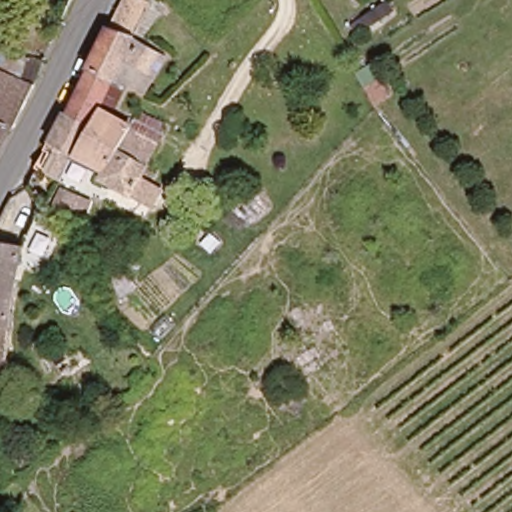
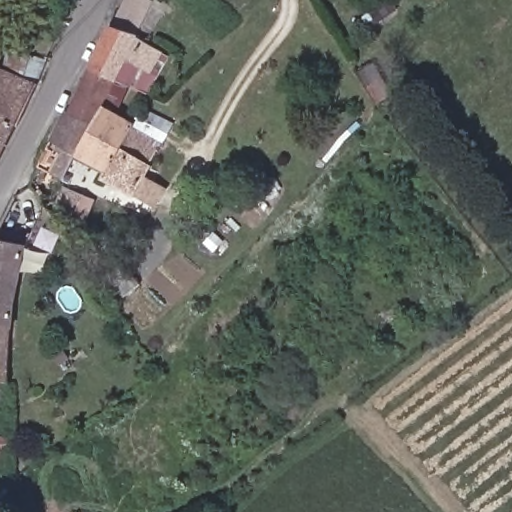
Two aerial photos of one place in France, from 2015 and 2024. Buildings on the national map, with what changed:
unchanged [(122,0),(144,0),(149,2),(132,36),(110,25),(122,0)]
unchanged [(60,181),(41,170),(55,143),(51,140),(65,110),(67,112),(90,65),(110,25),(155,50),(156,48),(165,53),(147,90),(115,74),(115,75),(128,83),(127,85),(124,92),(115,109),(101,101),(97,108),(75,153),(74,155),(60,181)]
unchanged [(32,51),(44,55),(33,96),(28,106),(21,122),(17,121),(0,157),(0,40),(18,46),(32,51)]
unchanged [(145,199),(131,192),(102,177),(106,170),(75,153),(97,108),(125,122),(128,115),(132,117),(137,105),(166,120),(160,140),(140,177),(152,184),(161,188),(152,204),(145,199)]
unchanged [(74,195),(90,203),(82,221),(65,214),(74,195)]
unchanged [(11,317),(7,379),(5,380),(2,400),(0,399),(0,226),(29,234),(11,317)]
unchanged [(106,273),(125,261),(142,285),(124,298),(106,273)]
unchanged [(9,461),(0,463),(0,436),(7,434),(9,461)]

